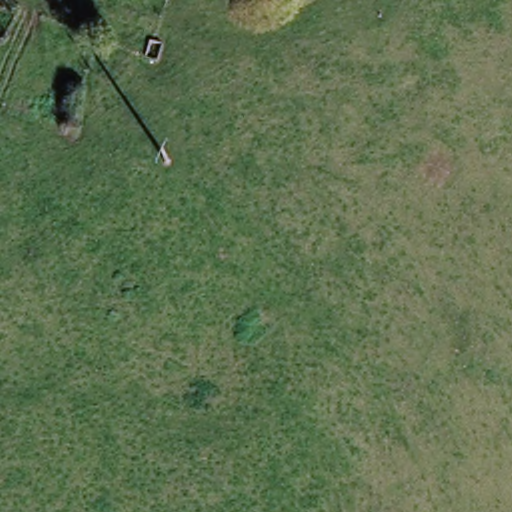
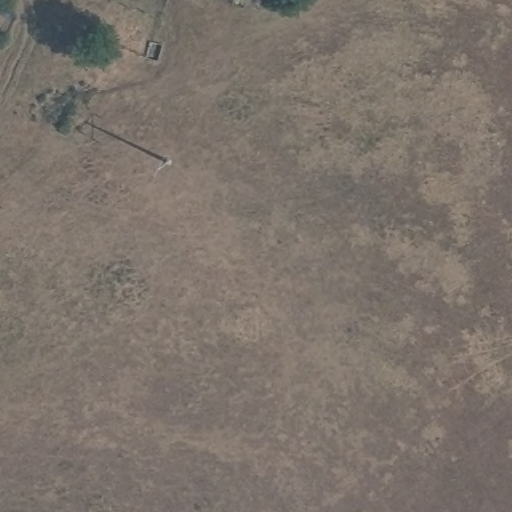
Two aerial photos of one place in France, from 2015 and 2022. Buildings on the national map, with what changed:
[]

